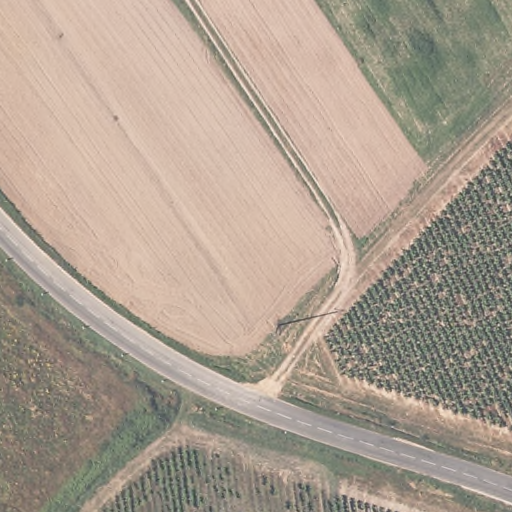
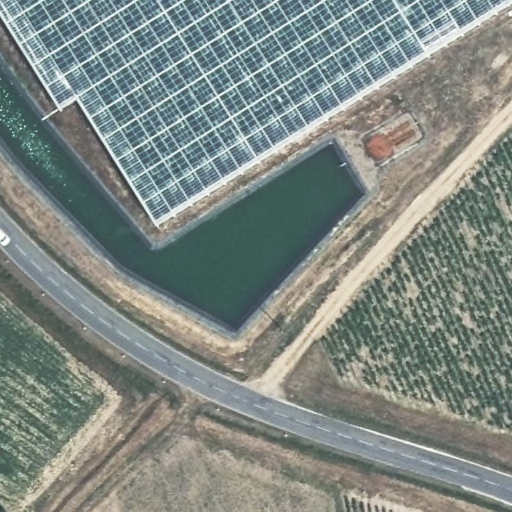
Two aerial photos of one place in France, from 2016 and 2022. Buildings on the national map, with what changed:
new [(152,225),(73,97),(56,108),(0,18),(0,0),(512,0),(152,225)]

